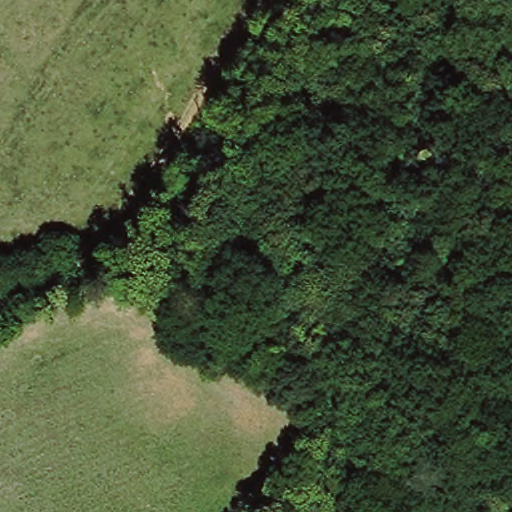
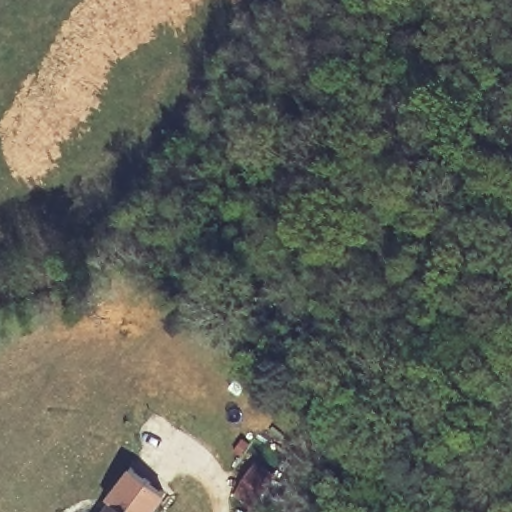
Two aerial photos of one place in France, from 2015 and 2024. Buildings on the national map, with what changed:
new [(151,512),(102,512),(110,501),(105,497),(128,467),(165,494),(151,512)]

